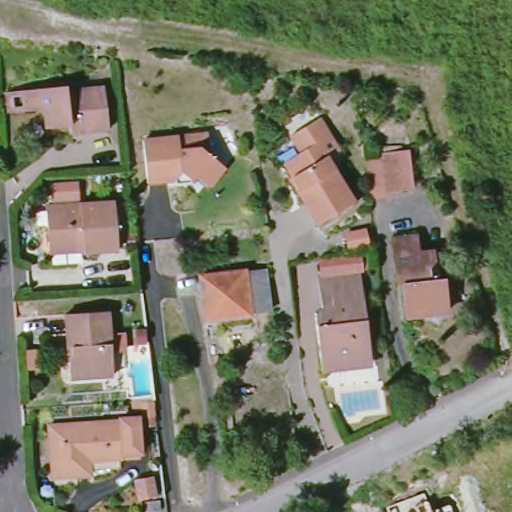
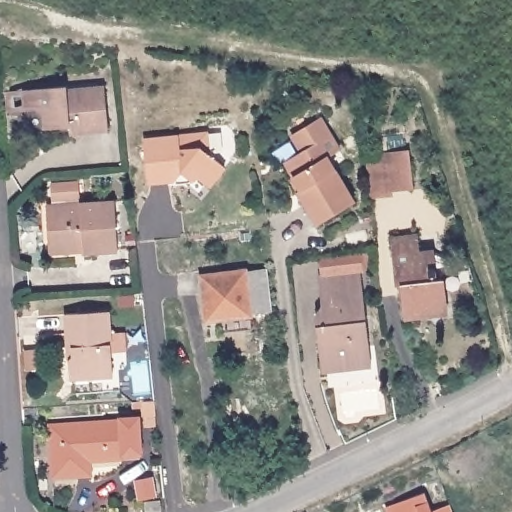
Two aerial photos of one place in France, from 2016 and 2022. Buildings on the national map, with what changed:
unchanged [(67,92),(105,88),(110,131),(72,136),(69,129),(50,131),(47,115),(38,110),(27,110),(8,113),(5,93),(25,91),(65,86),(67,92)]
unchanged [(297,188),(282,160),(298,150),(290,134),(319,117),(337,149),(325,156),(351,201),(314,222),(302,202),(295,189),(297,188)]
unchanged [(147,180),(144,137),(200,133),(208,133),(208,153),(225,167),(208,186),(195,174),(191,179),(190,180),(175,181),(175,178),(147,180)]
unchanged [(404,148),(411,184),(402,186),(385,189),(378,153),(397,149),(404,148)]
unchanged [(50,200),(48,186),(73,184),(75,198),(50,200)]
unchanged [(45,246),(43,207),(112,202),(115,250),(80,253),(80,250),(46,252),(45,246)]
unchanged [(401,290),(397,263),(393,246),(407,243),(415,242),(418,259),(434,256),(438,277),(438,282),(445,317),(443,319),(438,316),(415,320),(408,289),(401,290)]
unchanged [(213,276),(257,271),(261,314),(218,320),(213,276)]
unchanged [(353,366),(338,368),(322,370),(322,361),(319,338),(325,337),(323,328),(318,329),(317,316),(323,307),(320,276),(362,271),(372,357),(364,376),(353,366)]
unchanged [(64,364),(68,357),(67,350),(63,350),(62,317),(104,314),(109,378),(65,381),(64,364)]
unchanged [(81,473),(54,475),(51,425),(122,419),(122,416),(140,414),(142,450),(125,451),(125,455),(91,458),(92,471),(81,473)]
unchanged [(134,476),(149,474),(152,490),(137,493),(134,476)]
unchanged [(432,510),(450,505),(452,512),(388,512),(387,506),(425,492),(432,510)]
unchanged [(147,496),(158,496),(160,506),(148,507),(147,496)]

